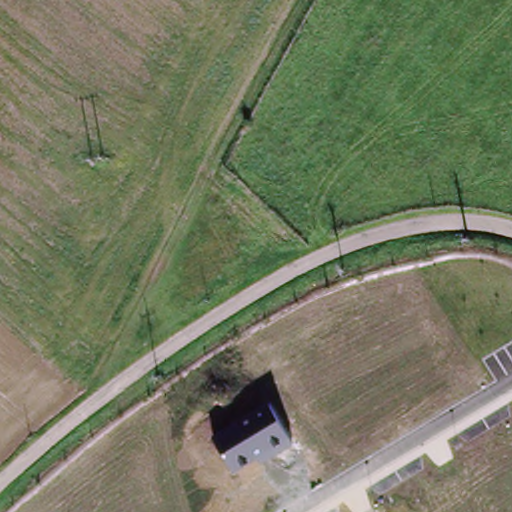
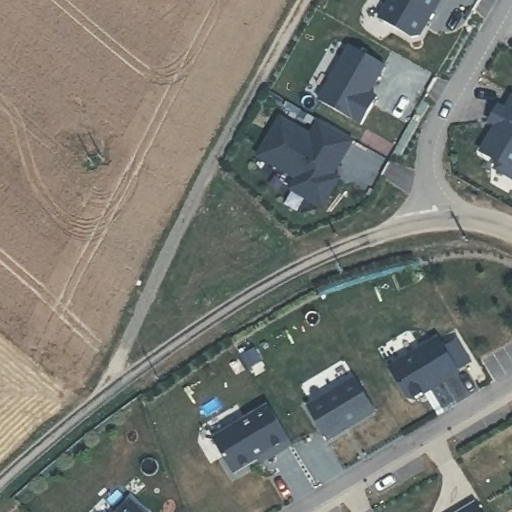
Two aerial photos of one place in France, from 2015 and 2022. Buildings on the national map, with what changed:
new [(419,31),(413,33),(381,15),(389,0),(437,0),(419,31)]
new [(352,43),(386,62),(366,97),(375,102),(364,122),(321,98),(352,43)]
new [(499,157),(482,149),(497,120),(491,117),(499,101),(506,104),(512,92),(512,173),(495,164),(499,157)]
new [(340,163),(336,161),(331,169),(341,176),(331,194),(319,187),(313,197),(293,186),(299,176),(261,154),(282,116),(313,133),(321,117),(355,137),(340,163)]
new [(441,340),(461,373),(434,390),(433,387),(424,392),(426,395),(416,401),(409,398),(391,368),(441,340)]
new [(355,380),(375,413),(328,442),(308,409),(355,380)]
unchanged [(212,435),(269,403),(294,446),(263,466),(259,460),(234,475),(212,435)]
new [(142,512),(118,512),(129,500),(142,512)]
new [(481,512),(465,512),(477,505),(481,512)]

